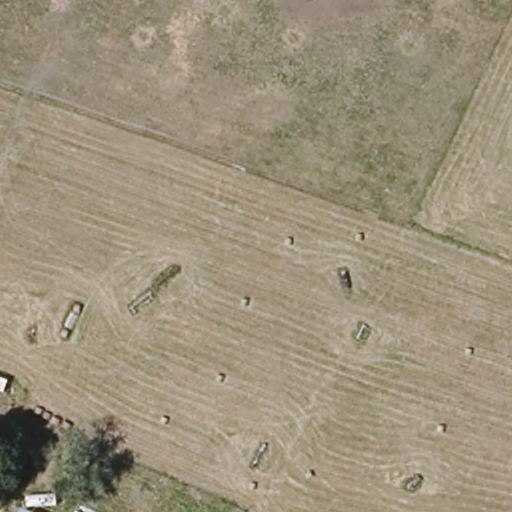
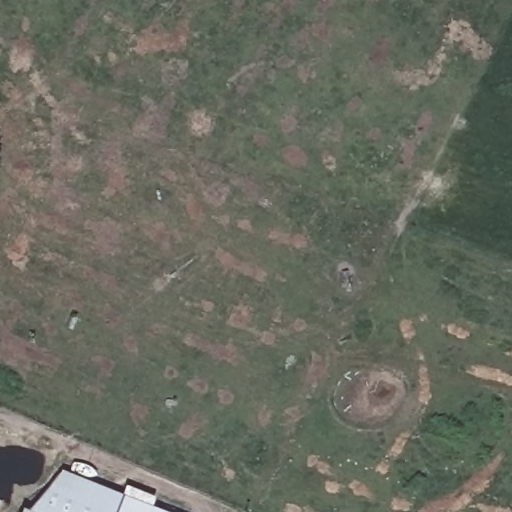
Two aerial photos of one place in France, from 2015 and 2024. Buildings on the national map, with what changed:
new [(60,468),(121,493),(170,512),(34,512),(27,509),(60,468)]
unchanged [(34,512),(21,512),(24,508),(34,512)]

